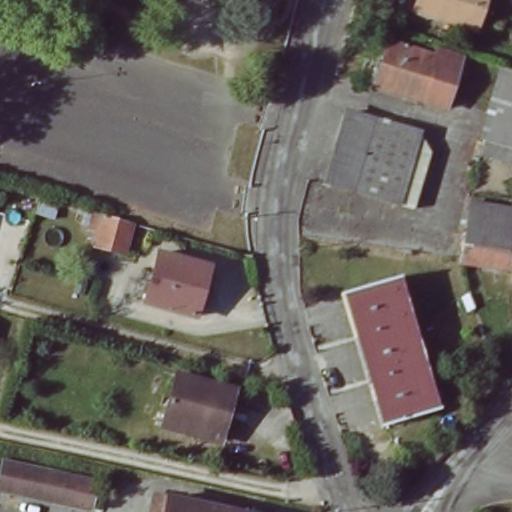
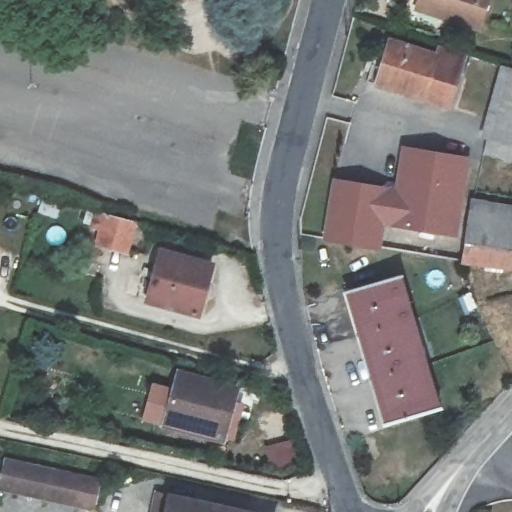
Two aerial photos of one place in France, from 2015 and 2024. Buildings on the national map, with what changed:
unchanged [(449,11),(448,14),(418,6),(420,0),(488,0),(481,21),(449,11)]
unchanged [(445,105),(376,84),(390,39),(440,56),(444,44),(463,51),(445,105)]
unchanged [(512,68),(512,148),(481,139),(503,65),(512,68)]
demolished [(416,195),(413,194),(397,189),(394,201),(328,182),(348,110),(415,129),(408,154),(428,161),(416,195)]
unchanged [(481,139),(512,148),(512,164),(480,153),(481,139)]
new [(331,178),(395,187),(401,147),(469,158),(456,239),(384,227),(380,251),(321,242),(331,178)]
unchanged [(62,214),(44,209),(47,196),(65,201),(62,214)]
unchanged [(462,262),(466,203),(512,211),(512,253),(510,269),(462,262)]
unchanged [(135,220),(128,251),(98,242),(102,227),(87,222),(90,208),(135,220)]
unchanged [(198,314),(147,299),(160,247),(213,261),(198,314)]
unchanged [(354,291),(385,281),(400,276),(405,291),(410,306),(415,320),(367,335),(354,291)]
unchanged [(415,320),(427,363),(440,408),(393,423),(380,379),(367,335),(415,320)]
unchanged [(220,434),(165,418),(178,370),(234,385),(220,434)]
unchanged [(93,509),(2,488),(8,460),(99,481),(93,509)]
unchanged [(244,512),(162,512),(166,493),(244,512)]

